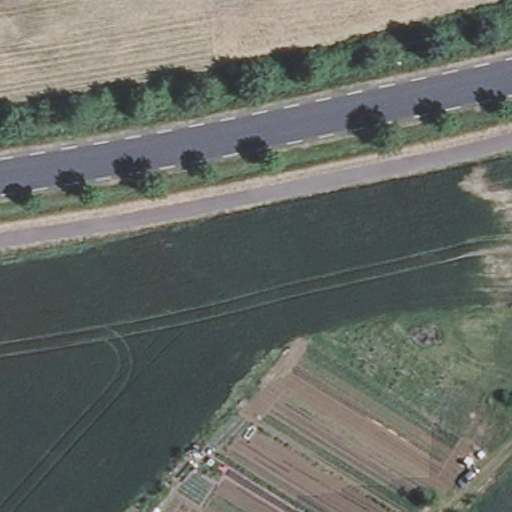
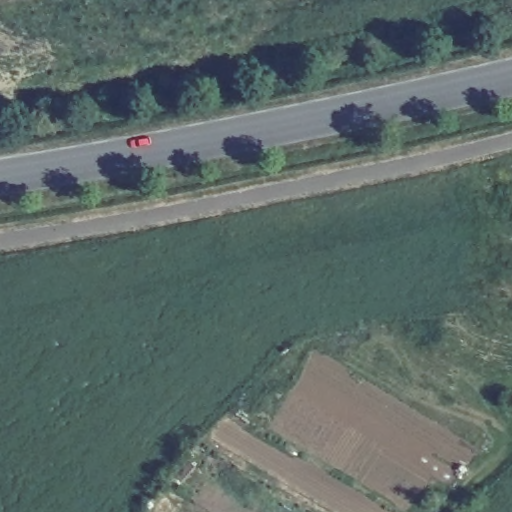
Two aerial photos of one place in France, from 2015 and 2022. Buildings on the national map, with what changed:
[]

